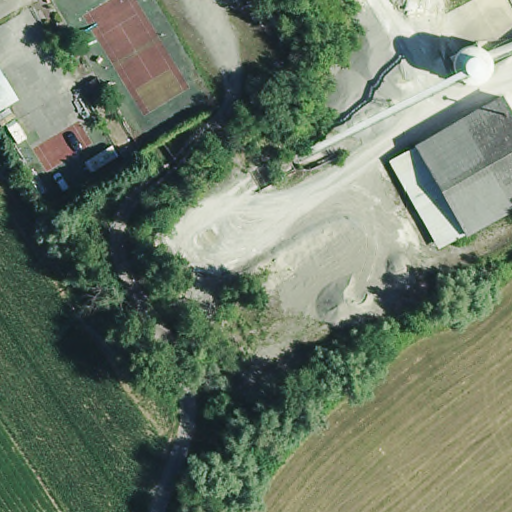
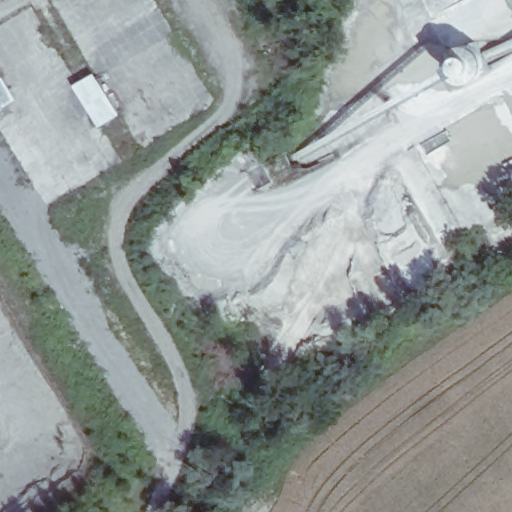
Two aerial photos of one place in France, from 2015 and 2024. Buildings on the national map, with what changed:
unchanged [(0,110),(0,72),(17,101),(0,110)]
demolished [(512,116),(512,199),(456,229),(410,140),(500,93),(512,116)]

